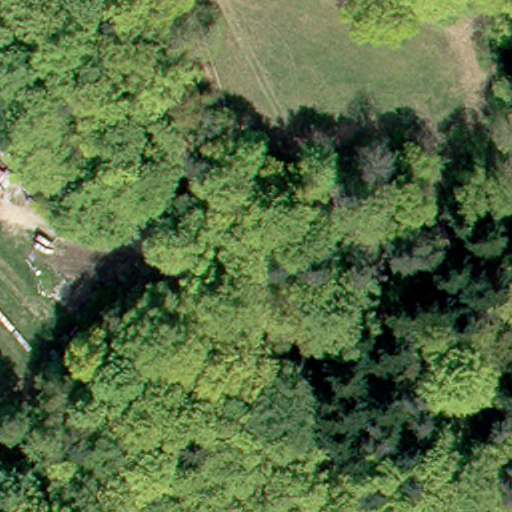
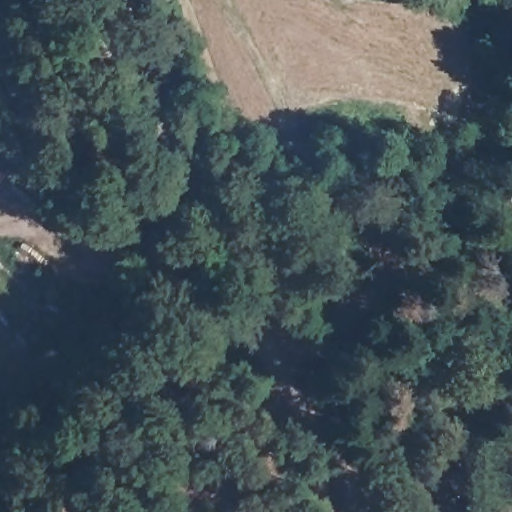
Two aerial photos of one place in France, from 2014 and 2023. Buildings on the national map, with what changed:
unchanged [(0,171),(0,161),(5,164),(0,171)]

